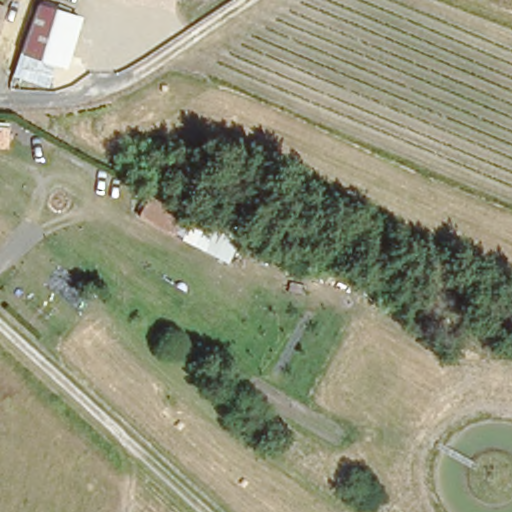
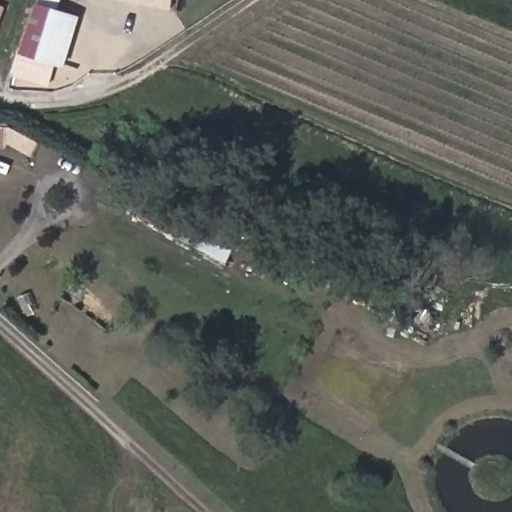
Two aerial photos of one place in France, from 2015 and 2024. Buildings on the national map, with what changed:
unchanged [(173,11),(109,0),(175,0),(173,11)]
unchanged [(52,8),(91,25),(73,72),(32,55),(28,54),(47,6),(52,8)]
unchanged [(227,264),(139,217),(152,189),(241,235),(227,264)]

